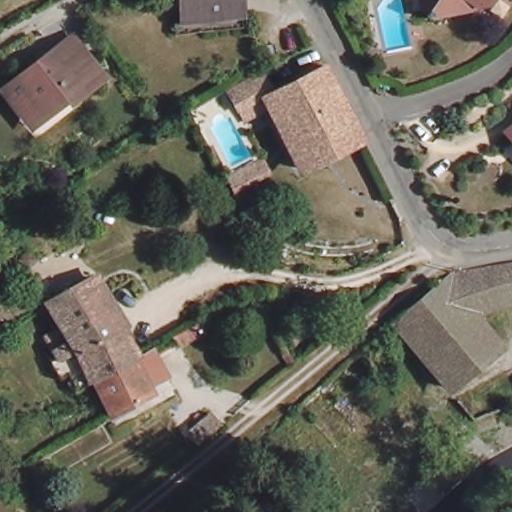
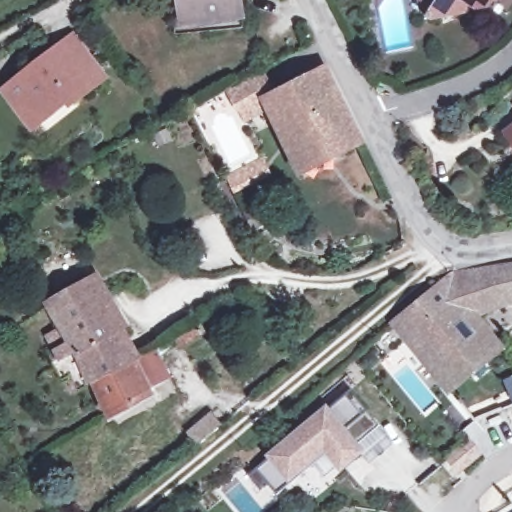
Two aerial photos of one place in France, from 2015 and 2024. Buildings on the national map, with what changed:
unchanged [(176,25),(173,0),(237,0),(239,20),(176,25)]
unchanged [(487,1),(484,5),(481,2),(457,5),(453,12),(436,15),(433,12),(433,9),(427,5),(426,0),(493,0),(487,1)]
unchanged [(16,104),(5,90),(41,61),(73,37),(76,40),(103,76),(73,100),(70,95),(43,117),(33,125),(16,104)]
unchanged [(324,60),(359,145),(289,170),(256,91),(324,60)]
unchanged [(507,108),(512,105),(512,104),(512,115),(507,108)]
unchanged [(498,135),(512,125),(512,154),(498,135)]
unchanged [(268,170),(231,190),(226,179),(263,159),(268,170)]
unchanged [(444,392),(391,327),(451,277),(479,273),(512,269),(512,306),(482,318),(477,321),(499,347),(444,392)]
unchanged [(153,350),(158,348),(173,379),(153,389),(156,393),(116,416),(99,382),(83,391),(73,375),(66,380),(58,363),(63,361),(49,336),(66,326),(53,305),(99,280),(134,337),(145,355),(153,350)]
unchanged [(203,331),(181,345),(176,335),(198,322),(203,331)]
new [(294,480),(276,495),(266,482),(258,488),(247,475),(349,390),(379,426),(356,445),(361,451),(341,467),(326,448),(328,451),(294,480)]
unchanged [(186,433),(211,413),(222,425),(196,445),(186,433)]

